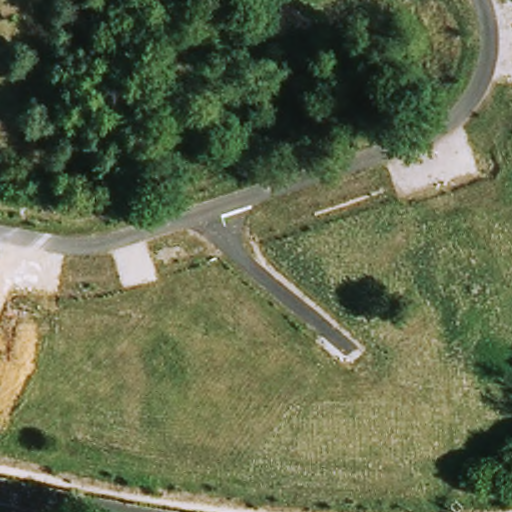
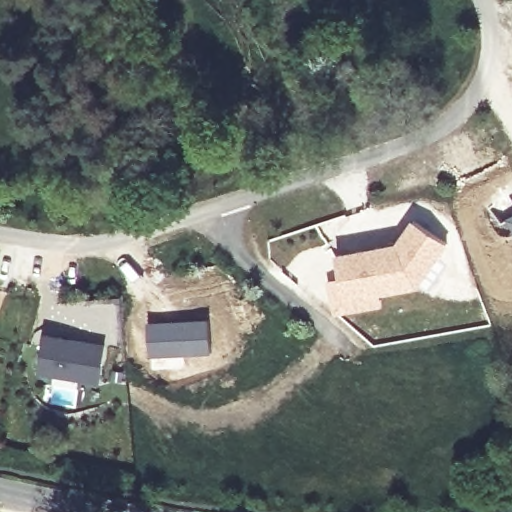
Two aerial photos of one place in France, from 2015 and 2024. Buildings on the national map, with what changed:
new [(512,233),(503,221),(512,215),(512,233)]
new [(336,277),(332,254),(394,242),(412,218),(448,244),(417,292),(381,297),(382,308),(332,316),(326,279),(336,277)]
new [(208,317),(210,355),(182,357),(183,369),(150,372),(146,322),(208,317)]
new [(44,335),(105,345),(99,383),(38,373),(44,335)]

